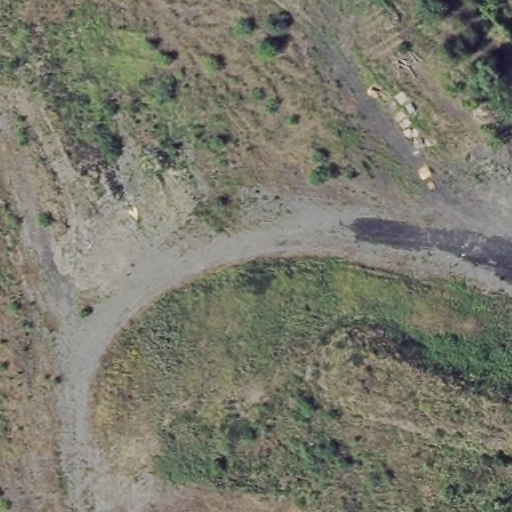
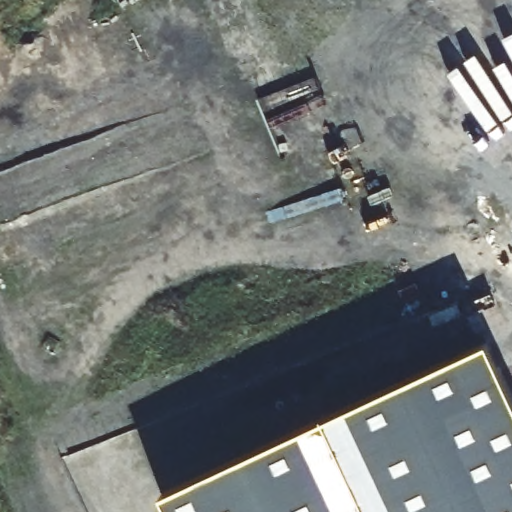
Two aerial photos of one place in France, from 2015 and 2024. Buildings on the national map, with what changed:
new [(512,415),(512,512),(160,512),(156,504),(483,353),(512,415)]

